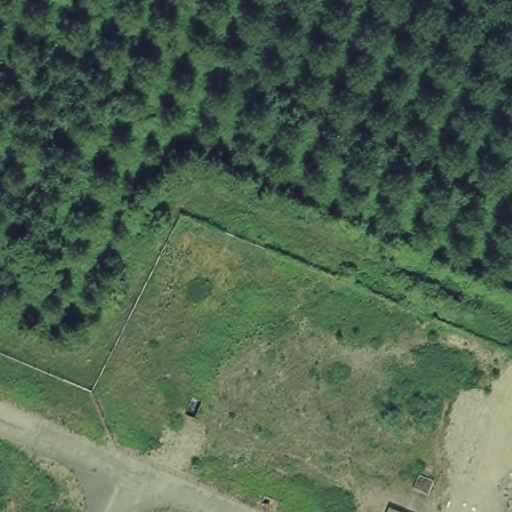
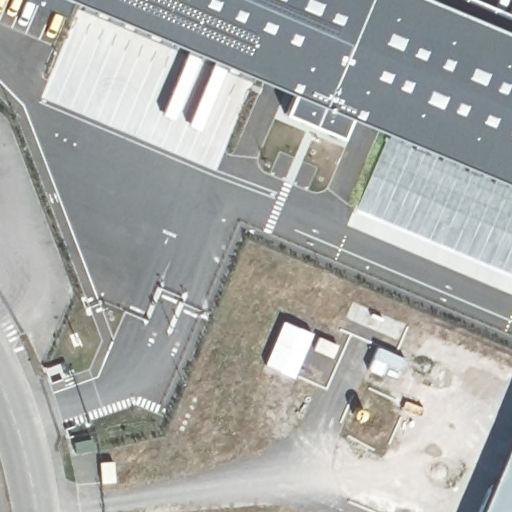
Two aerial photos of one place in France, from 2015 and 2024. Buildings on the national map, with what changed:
new [(512,29),(512,180),(358,116),(347,134),(287,111),(297,89),(76,0),(443,0),(512,29)]
new [(282,319),(311,332),(293,376),(263,364),(282,319)]
new [(512,512),(477,512),(512,428),(512,512)]
new [(91,438),(93,449),(74,453),(72,441),(91,438)]
new [(111,461),(113,481),(101,482),(99,462),(111,461)]
demolished [(408,512),(388,512),(392,504),(408,512)]

